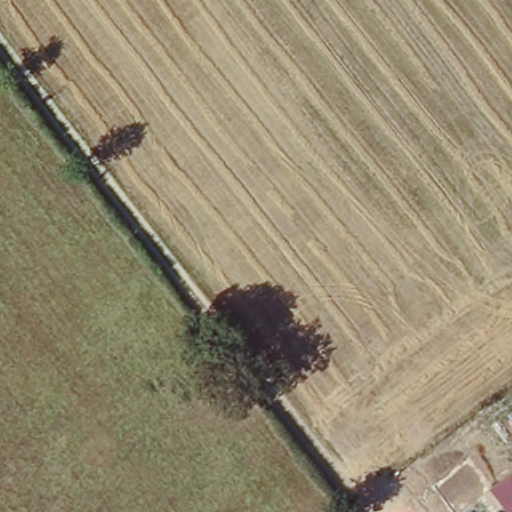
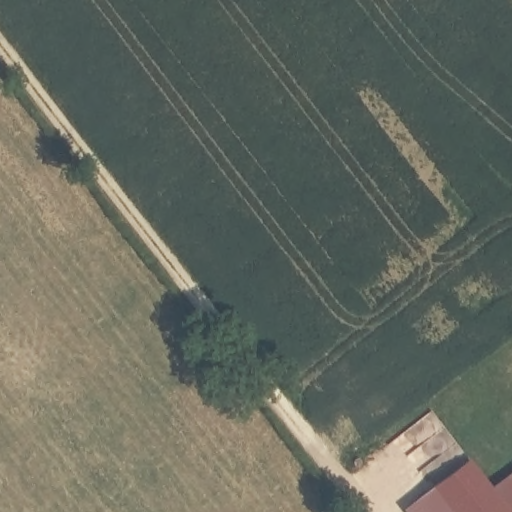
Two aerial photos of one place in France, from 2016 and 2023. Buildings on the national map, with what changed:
new [(491,488),(512,472),(512,512),(406,512),(404,510),(469,460),(491,488)]
demolished [(512,512),(458,512),(512,471),(512,512)]

